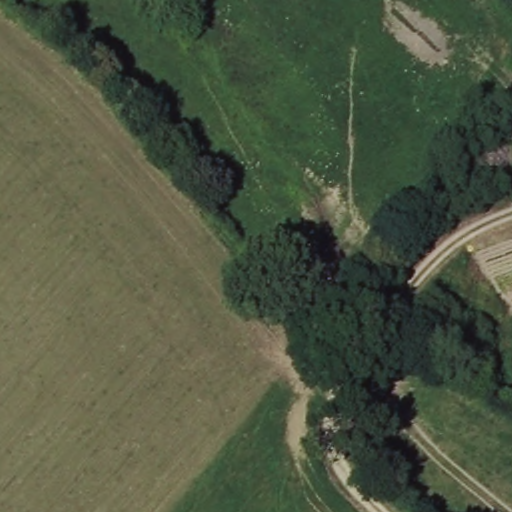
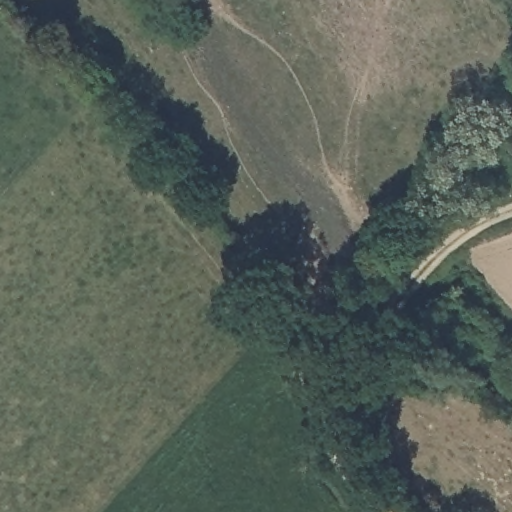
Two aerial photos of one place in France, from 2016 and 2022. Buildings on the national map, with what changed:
[]

